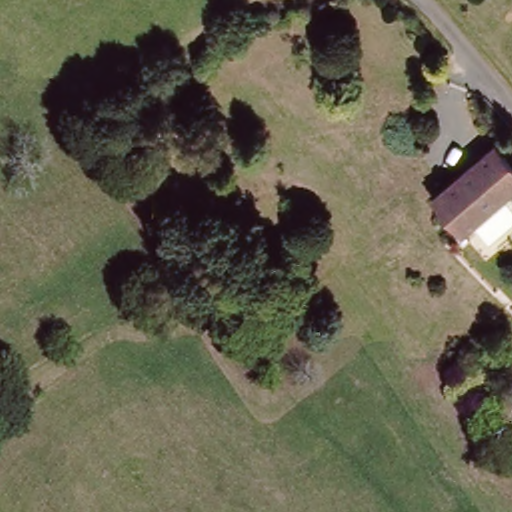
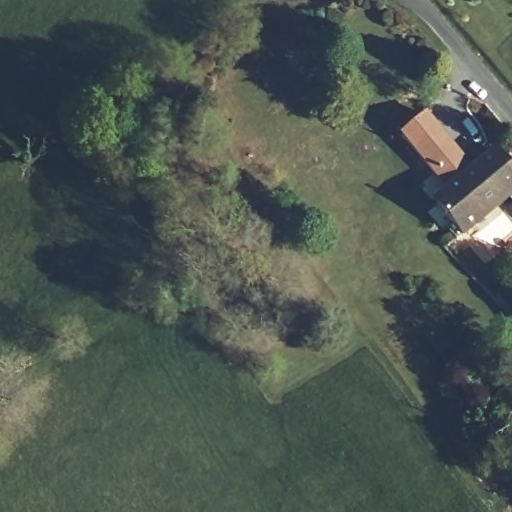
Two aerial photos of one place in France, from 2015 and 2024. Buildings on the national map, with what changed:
new [(442,213),(431,199),(443,189),(400,133),(427,112),(474,169),(444,192),(442,213)]
unchanged [(463,235),(442,213),(444,192),(493,154),(512,179),(512,199),(508,194),(463,235)]

